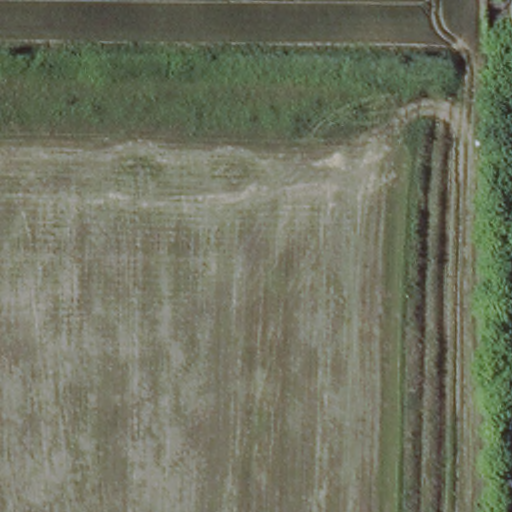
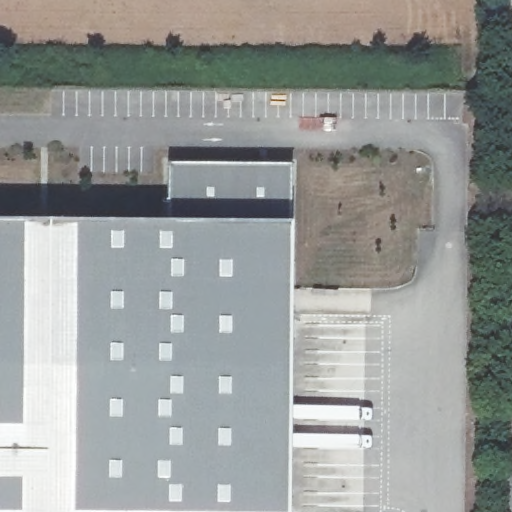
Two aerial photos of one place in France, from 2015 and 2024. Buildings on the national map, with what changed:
new [(167,163),(291,165),(281,224),(290,224),(288,512),(0,512),(0,221),(157,223),(167,163)]

